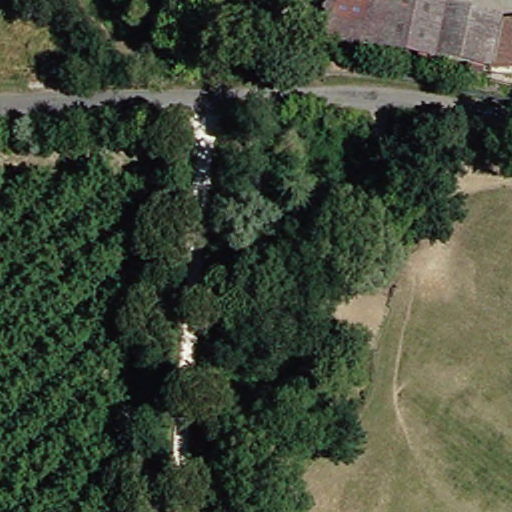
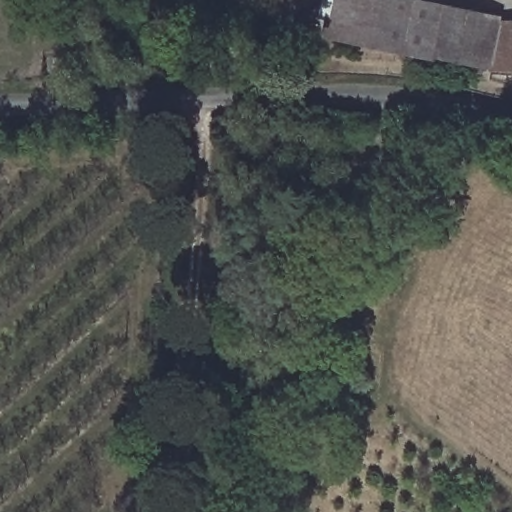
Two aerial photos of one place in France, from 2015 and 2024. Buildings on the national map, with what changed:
unchanged [(331,35),(338,0),(404,0),(439,7),(430,55),(331,35)]
unchanged [(488,16),(487,22),(485,65),(430,55),(439,7),(488,16)]
unchanged [(511,67),(485,65),(487,22),(512,23),(512,67),(511,67)]
unchanged [(358,287),(347,272),(388,242),(398,256),(358,287)]

